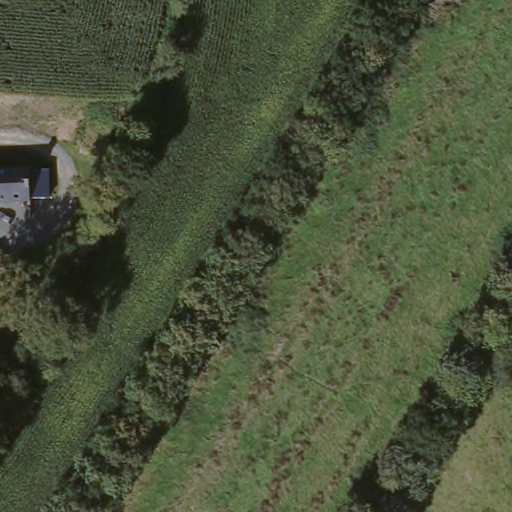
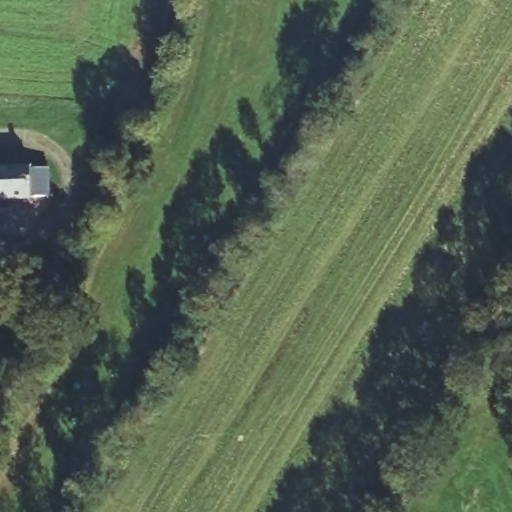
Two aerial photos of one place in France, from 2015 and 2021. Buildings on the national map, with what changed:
unchanged [(16,204),(0,205),(0,172),(22,170),(32,170),(34,202),(16,204)]

